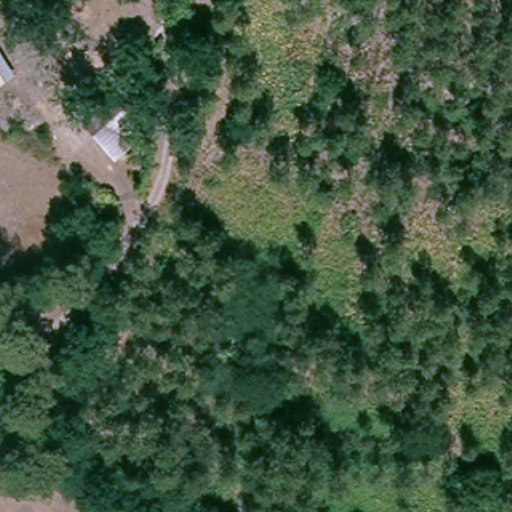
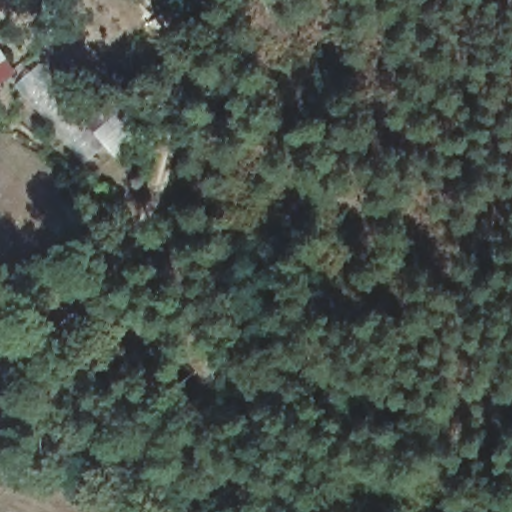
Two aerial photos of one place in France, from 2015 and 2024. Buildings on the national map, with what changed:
unchanged [(0,75),(0,62),(5,72),(0,75)]
unchanged [(119,97),(150,129),(113,161),(83,127),(119,97)]

